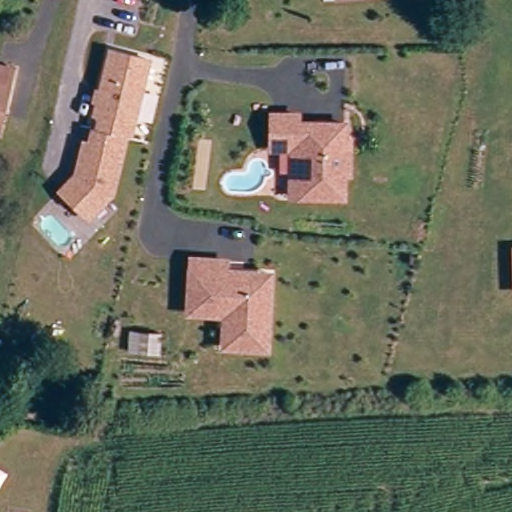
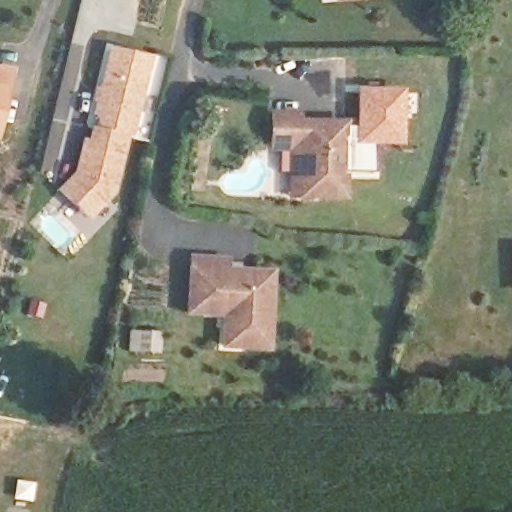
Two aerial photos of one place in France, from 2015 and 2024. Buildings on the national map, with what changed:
unchanged [(128,135),(121,134),(99,129),(101,114),(96,113),(110,49),(149,57),(132,136),(128,135)]
unchanged [(0,103),(0,67),(7,69),(0,103)]
new [(355,88),(400,90),(400,146),(351,145),(355,88)]
unchanged [(295,173),(295,149),(272,149),(272,115),(297,116),(297,124),(345,125),(345,141),(350,141),(350,174),(344,174),(343,197),(300,197),(295,197),(295,173)]
unchanged [(99,129),(121,134),(128,135),(115,192),(92,217),(63,190),(80,174),(86,141),(91,142),(95,127),(99,129)]
unchanged [(189,313),(190,261),(225,261),(225,271),(270,271),(270,285),(268,347),(225,346),(225,327),(226,313),(189,313)]
unchanged [(161,331),(161,348),(134,347),(134,330),(161,331)]

